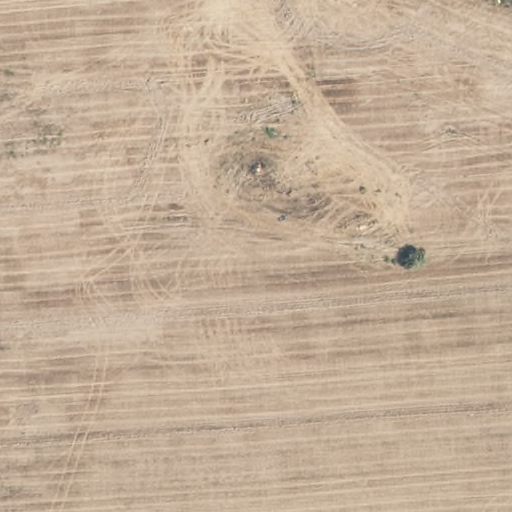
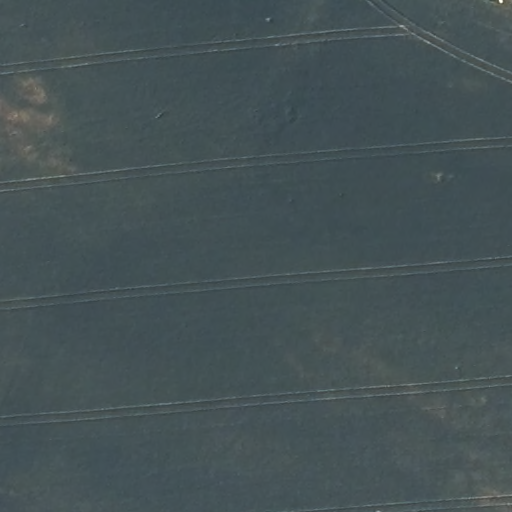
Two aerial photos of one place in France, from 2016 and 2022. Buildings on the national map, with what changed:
[]

